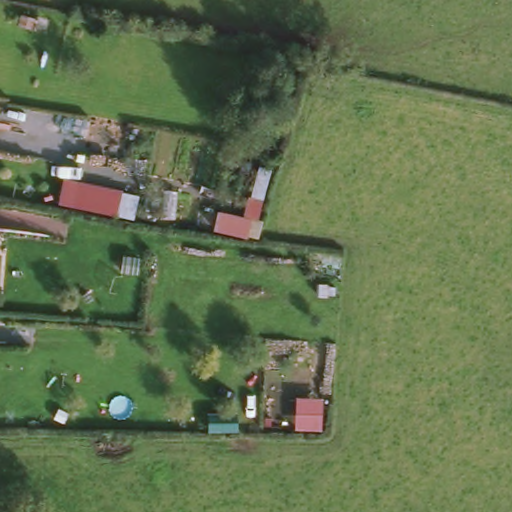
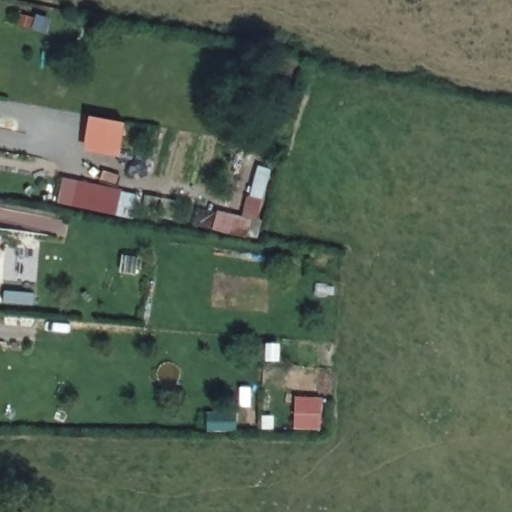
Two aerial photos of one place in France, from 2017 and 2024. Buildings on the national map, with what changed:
new [(127,126),(120,160),(83,152),(90,118),(127,126)]
unchanged [(63,209),(67,183),(117,191),(113,216),(63,209)]
unchanged [(124,193),(140,196),(137,218),(120,215),(124,193)]
unchanged [(227,213),(257,217),(253,235),(224,230),(227,213)]

